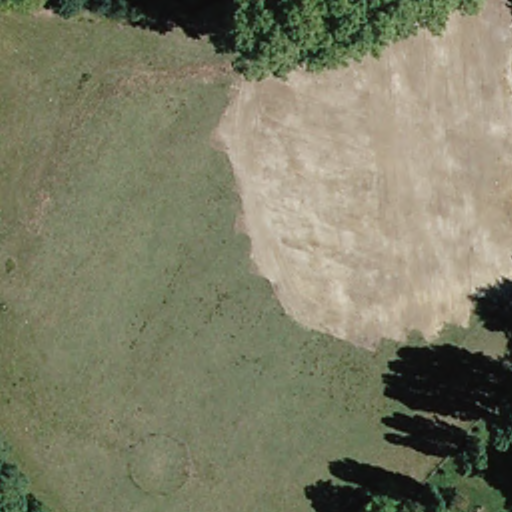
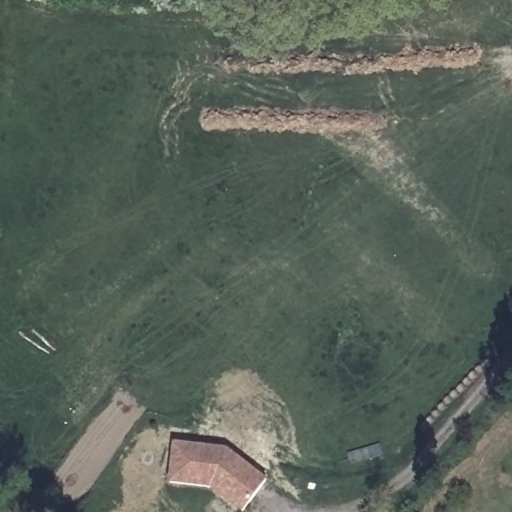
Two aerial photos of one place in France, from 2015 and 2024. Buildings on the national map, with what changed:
new [(243,512),(237,512),(208,491),(167,486),(171,444),(225,449),(267,482),(243,512)]

